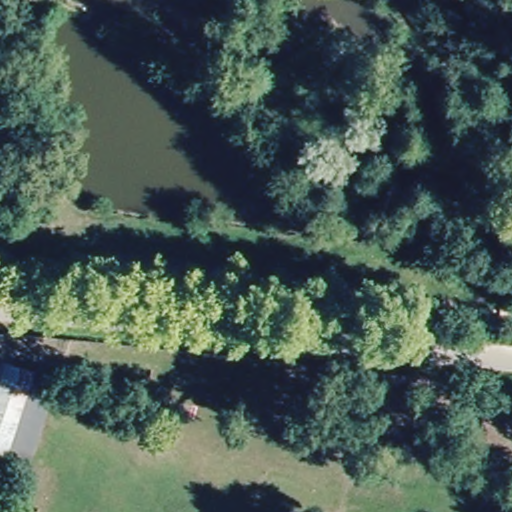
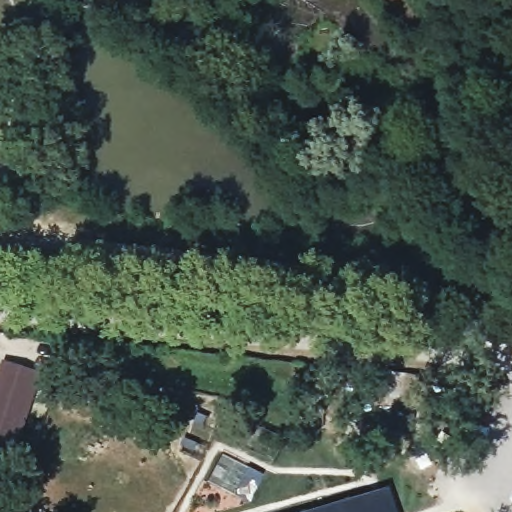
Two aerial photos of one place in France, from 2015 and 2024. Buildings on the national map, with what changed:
unchanged [(0,368),(2,359),(33,367),(7,458),(0,456),(0,368)]
unchanged [(53,373),(28,464),(7,458),(33,367),(53,373)]
new [(387,489),(394,512),(309,512),(387,489)]

